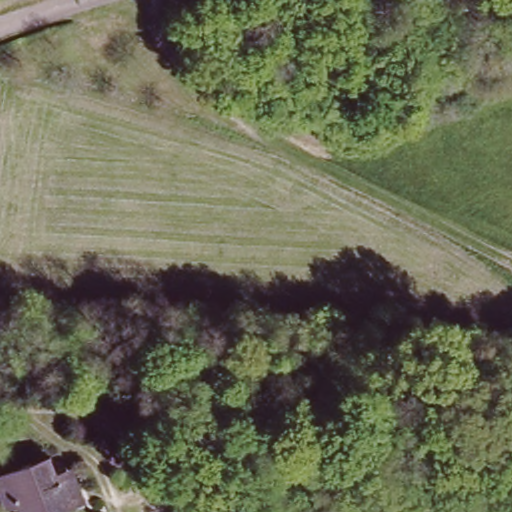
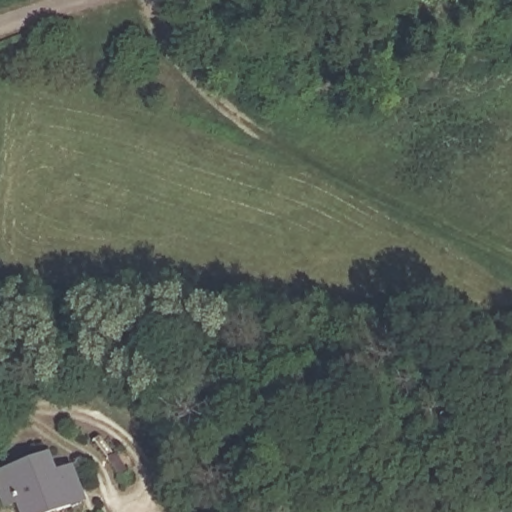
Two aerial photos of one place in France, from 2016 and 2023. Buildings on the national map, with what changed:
unchanged [(4,506),(0,495),(0,474),(6,471),(51,456),(58,476),(73,470),(85,503),(68,508),(58,512),(21,512),(17,502),(4,506)]

